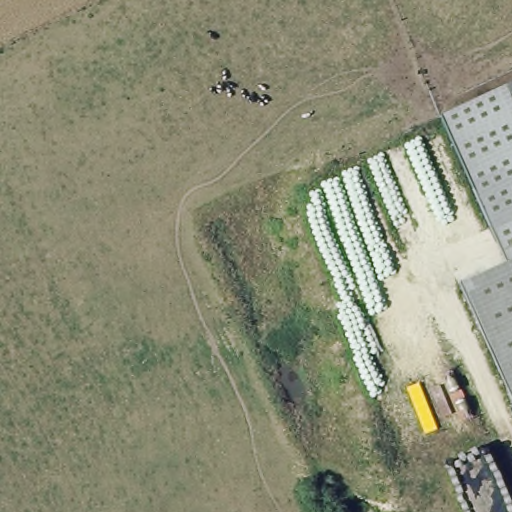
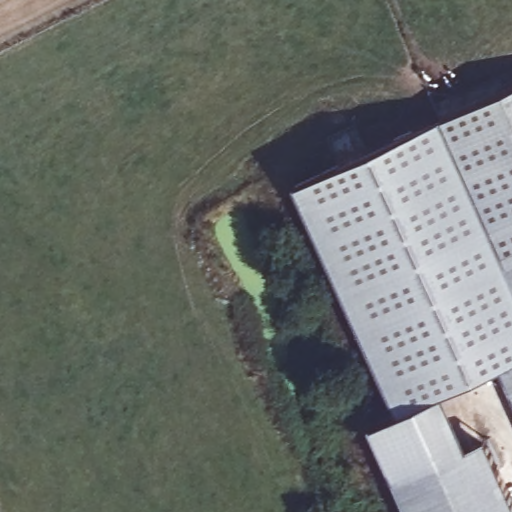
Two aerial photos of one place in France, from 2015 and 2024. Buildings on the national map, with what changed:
unchanged [(508,271),(440,126),(512,93),(512,395),(464,291),(508,271)]
new [(508,271),(464,291),(494,356),(397,401),(304,186),(440,126),(508,271)]
new [(373,421),(442,393),(464,442),(395,470),(373,421)]
new [(484,434),(512,494),(512,512),(414,512),(395,470),(484,434)]

